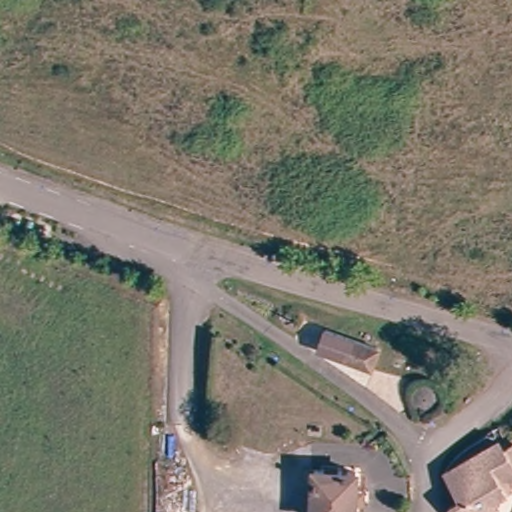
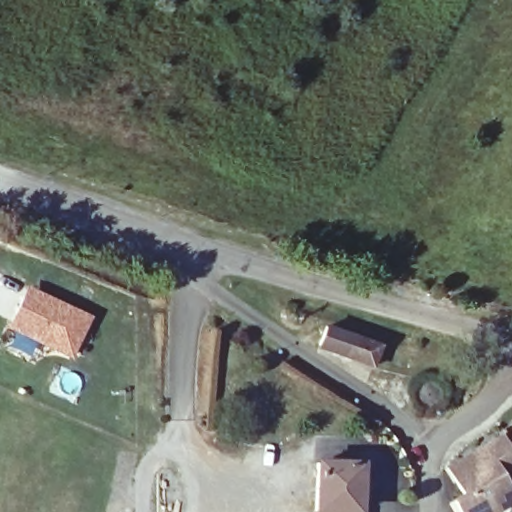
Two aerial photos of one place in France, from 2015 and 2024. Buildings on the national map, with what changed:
new [(28,285),(91,315),(69,359),(6,328),(28,285)]
unchanged [(371,356),(337,348),(342,328),(374,336),(371,356)]
unchanged [(448,468),(495,440),(498,447),(509,442),(512,445),(512,464),(509,466),(510,469),(505,473),(509,479),(495,484),(460,496),(448,468)]
unchanged [(356,462),(356,512),(312,512),(313,463),(356,462)]
unchanged [(495,484),(492,512),(438,512),(436,505),(460,496),(495,484)]

